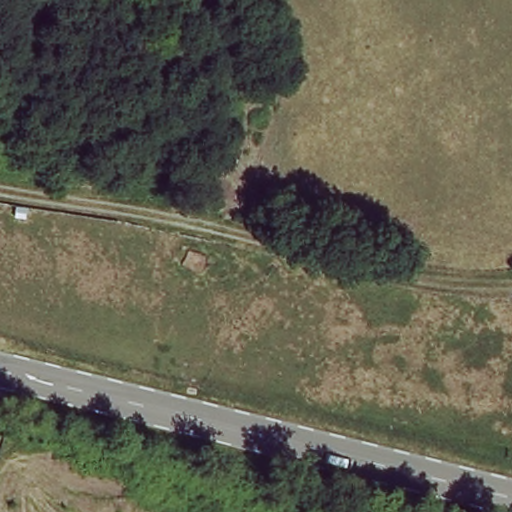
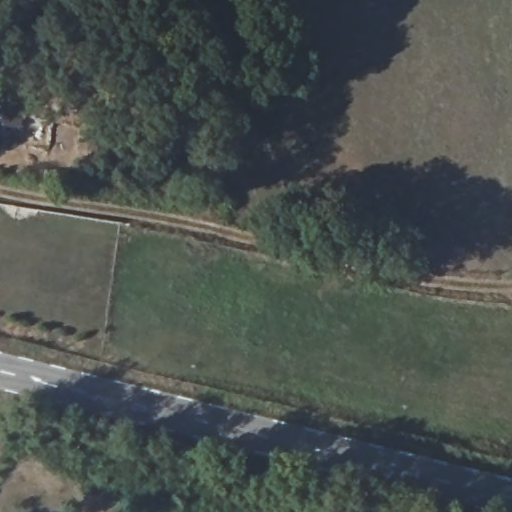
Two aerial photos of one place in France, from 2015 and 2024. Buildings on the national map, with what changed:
[]

